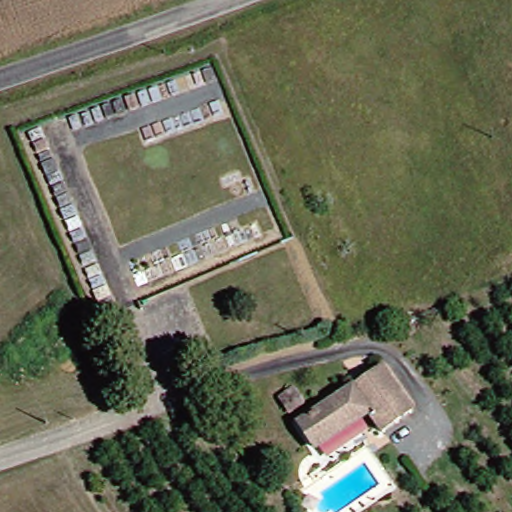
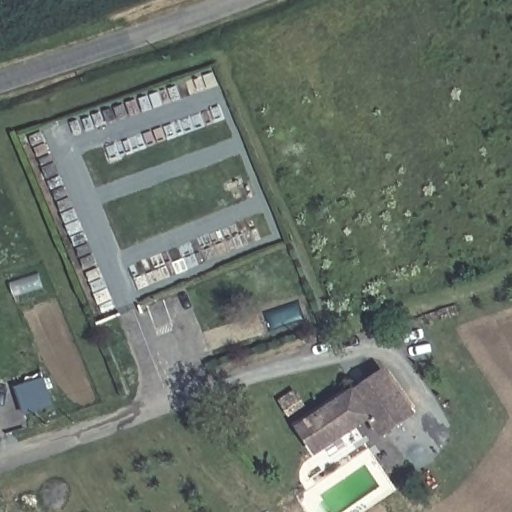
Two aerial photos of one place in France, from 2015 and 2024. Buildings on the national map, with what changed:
unchanged [(412,417),(383,436),(368,417),(318,453),(300,429),(383,374),(412,417)]
new [(23,414),(14,386),(44,377),(53,405),(23,414)]
unchanged [(289,398),(273,408),(263,392),(276,382),(289,398)]

